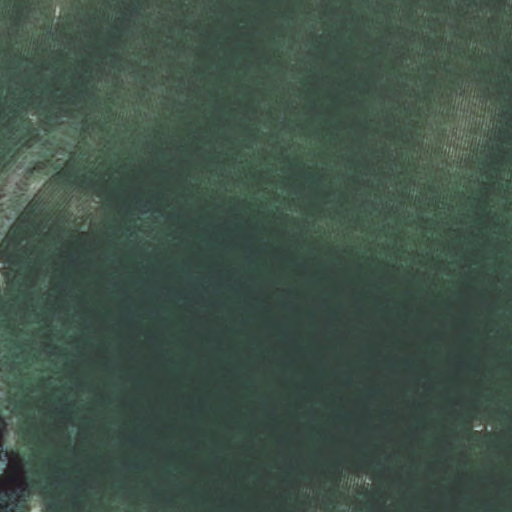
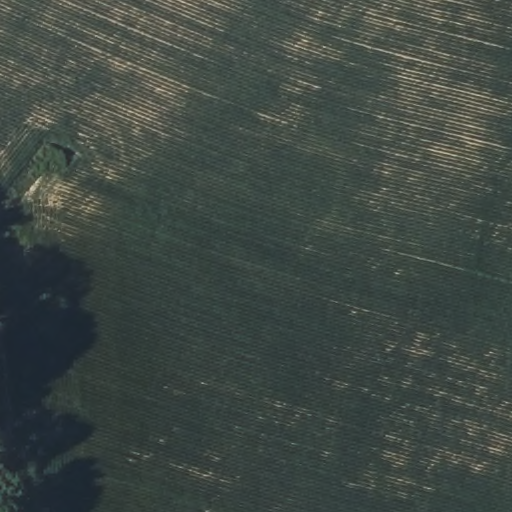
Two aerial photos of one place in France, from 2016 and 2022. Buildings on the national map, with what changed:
[]

